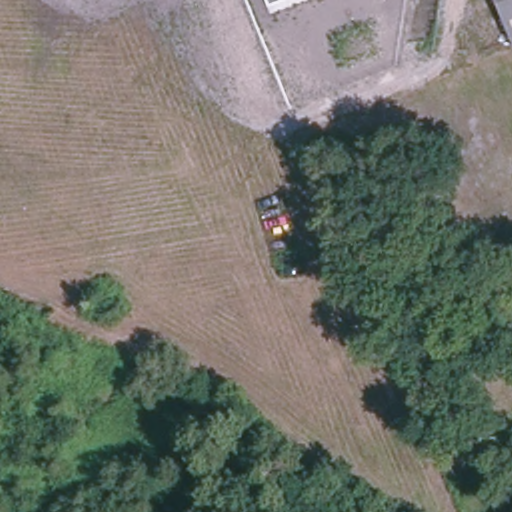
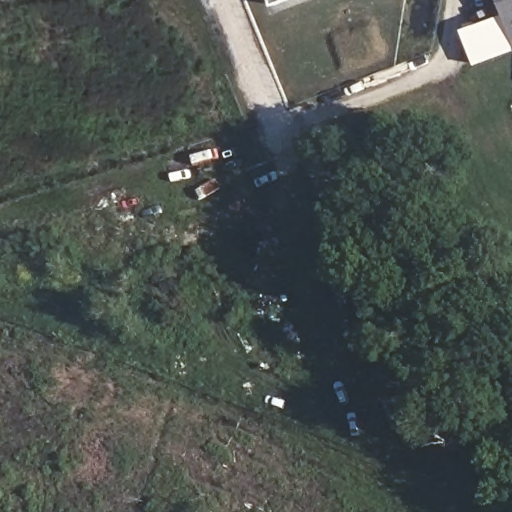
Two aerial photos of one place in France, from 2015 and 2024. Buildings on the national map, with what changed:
unchanged [(273,0),(282,0),(274,3),(273,0)]
unchanged [(512,0),(512,49),(495,0),(512,0)]
new [(463,29),(500,15),(512,49),(512,51),(477,64),(463,29)]

